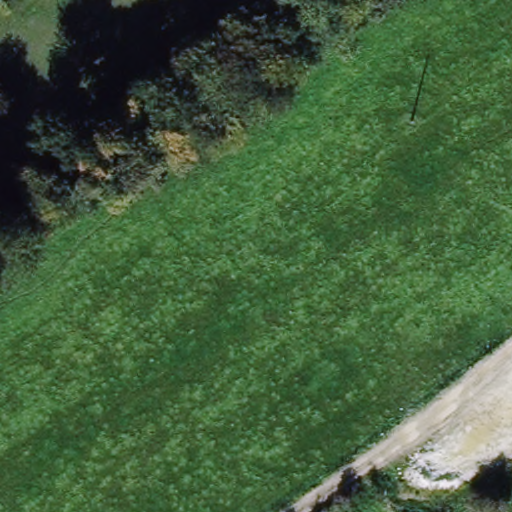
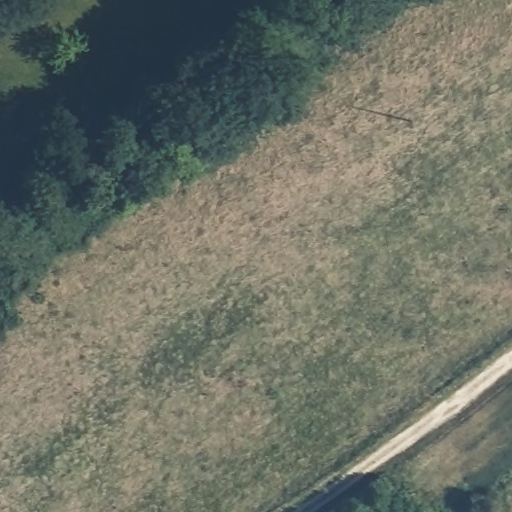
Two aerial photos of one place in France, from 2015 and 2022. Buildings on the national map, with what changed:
[]

